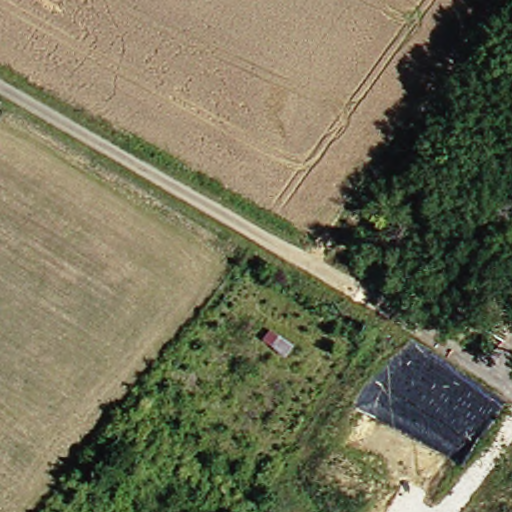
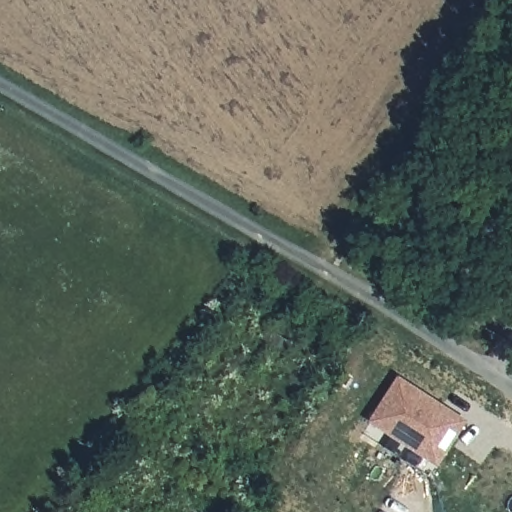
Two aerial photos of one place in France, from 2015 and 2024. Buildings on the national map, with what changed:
new [(398,376),(466,421),(438,467),(369,422),(398,376)]

